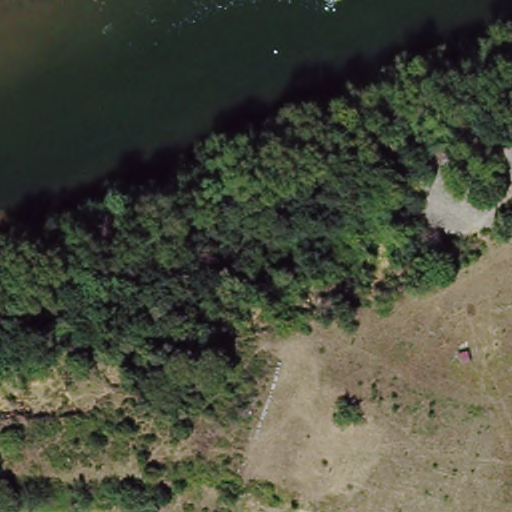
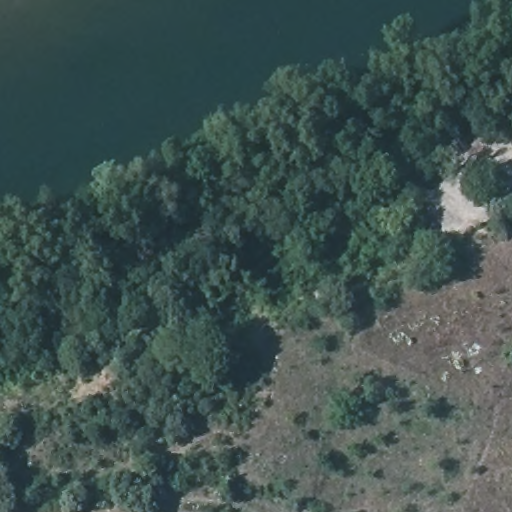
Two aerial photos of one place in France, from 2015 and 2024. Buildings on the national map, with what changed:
[]

